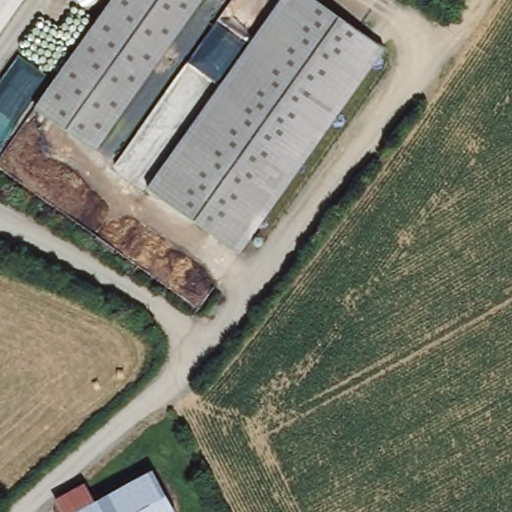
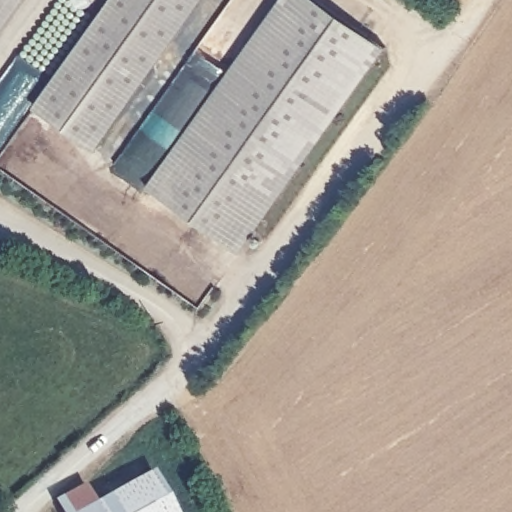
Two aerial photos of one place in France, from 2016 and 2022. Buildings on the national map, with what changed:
unchanged [(0,29),(0,0),(20,0),(0,29)]
unchanged [(100,142),(41,100),(114,0),(204,0),(100,142)]
unchanged [(79,2),(78,0),(97,0),(94,2),(91,4),(85,5),(79,2)]
unchanged [(388,46),(243,248),(152,182),(284,0),(325,0),(388,46)]
unchanged [(60,512),(52,497),(83,481),(93,500),(151,467),(177,512),(60,512)]

